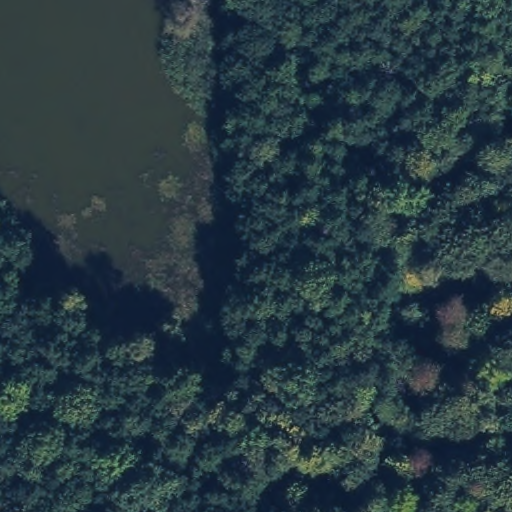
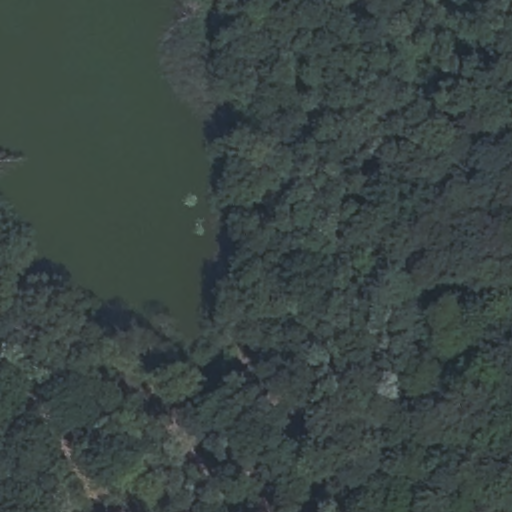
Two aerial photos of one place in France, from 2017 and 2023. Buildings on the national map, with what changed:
unchanged [(512,361),(502,337),(512,333),(512,361)]

